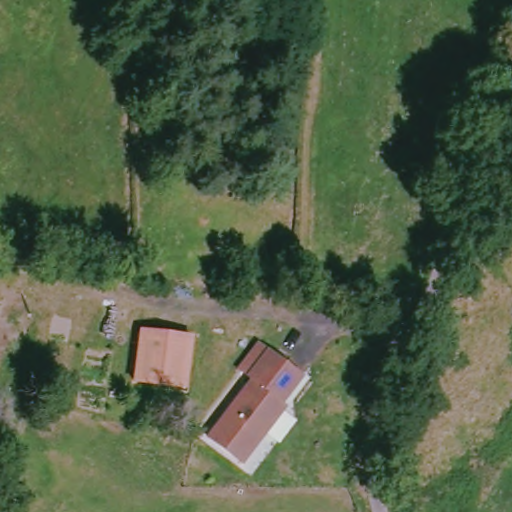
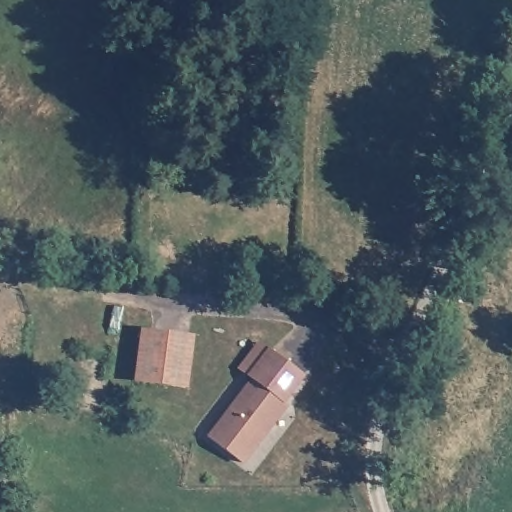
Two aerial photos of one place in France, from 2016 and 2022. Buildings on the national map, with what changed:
unchanged [(141,333),(192,340),(185,390),(134,382),(141,333)]
unchanged [(303,380),(283,406),(284,412),(248,458),(242,466),(221,450),(207,440),(252,383),(248,379),(257,368),(268,354),(303,380)]

